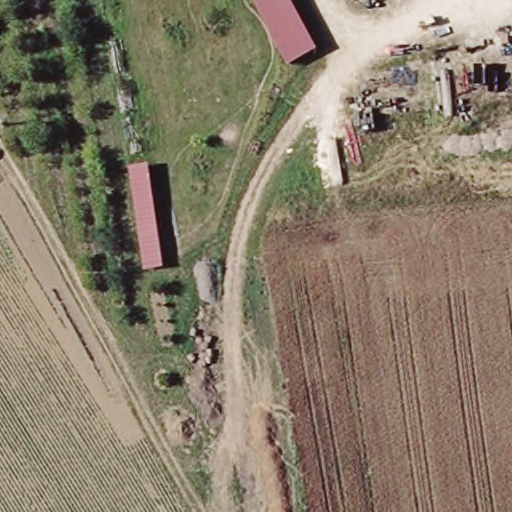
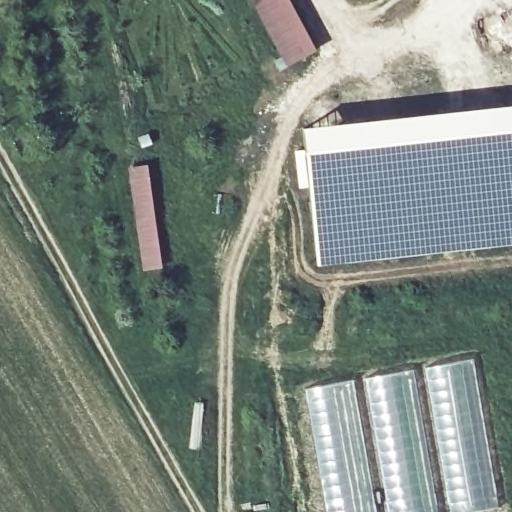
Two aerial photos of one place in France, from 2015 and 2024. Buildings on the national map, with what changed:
unchanged [(317,50),(288,67),(252,0),(291,0),(317,50)]
new [(512,244),(320,263),(307,127),(512,106),(512,244)]
unchanged [(149,162),(164,268),(142,272),(127,166),(149,162)]
new [(499,507),(472,512),(448,512),(431,417),(423,366),(473,357),(499,507)]

